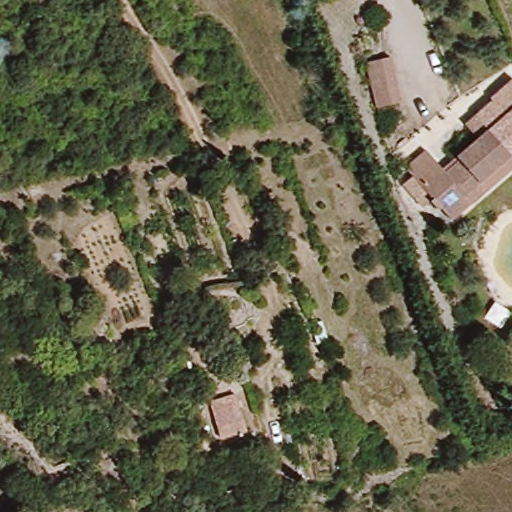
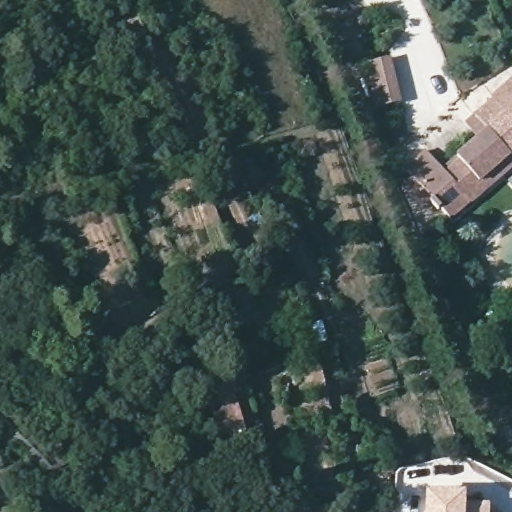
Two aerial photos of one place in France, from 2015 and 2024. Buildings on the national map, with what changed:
unchanged [(380,108),(375,94),(365,65),(388,57),(398,87),(403,101),(380,108)]
unchanged [(408,163),(428,146),(442,163),(457,150),(479,132),(467,117),(476,110),(494,94),(492,93),(512,76),(512,161),(485,184),(451,214),(442,203),(439,206),(430,196),(424,202),(405,179),(414,171),(408,163)]
unchanged [(246,426),(221,433),(215,410),(240,403),(246,426)]
new [(467,490),(466,501),(466,512),(422,512),(424,487),(467,490)]
new [(490,503),(489,512),(466,512),(466,501),(490,503)]

